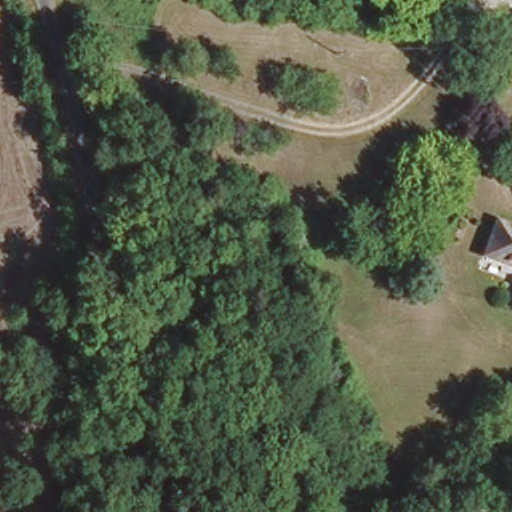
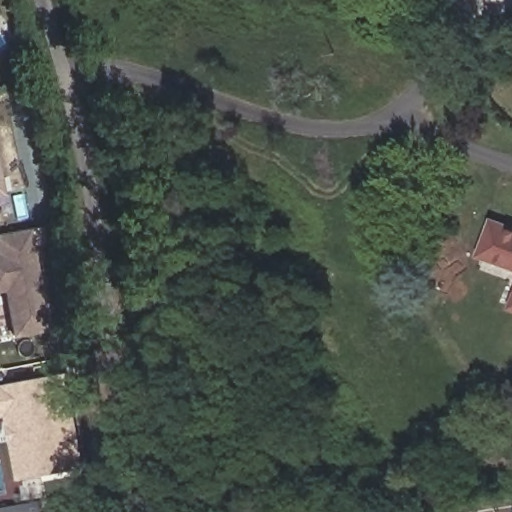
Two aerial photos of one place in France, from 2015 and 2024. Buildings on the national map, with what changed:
unchanged [(69,0),(81,0),(84,9),(73,11),(69,0)]
new [(0,196),(0,190),(1,195),(0,196)]
new [(4,291),(0,292),(0,235),(31,230),(50,332),(12,339),(4,291)]
unchanged [(487,231),(512,239),(512,272),(476,260),(487,231)]
unchanged [(508,311),(512,299),(512,313),(508,311)]
new [(0,419),(0,386),(64,375),(81,470),(18,481),(6,418),(0,419)]
new [(85,512),(70,512),(85,510),(85,512)]

